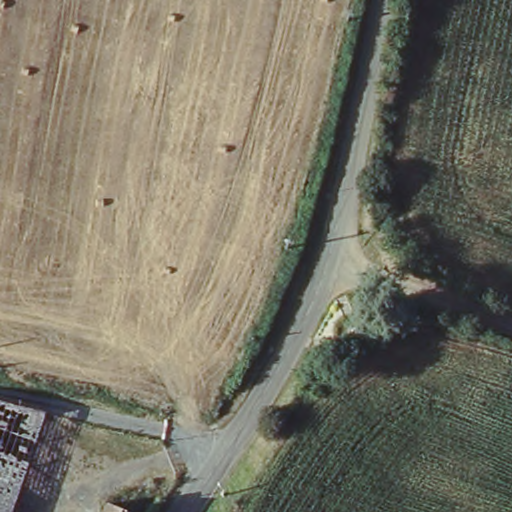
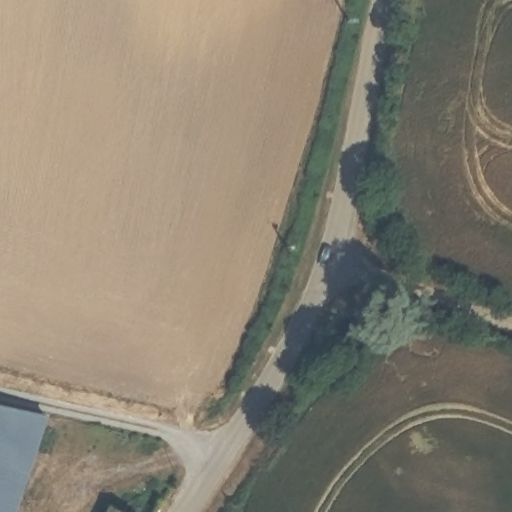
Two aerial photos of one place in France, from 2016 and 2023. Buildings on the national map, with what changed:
unchanged [(11,512),(0,512),(0,407),(40,420),(11,512)]
unchanged [(111,502),(130,512),(105,512),(111,502)]

